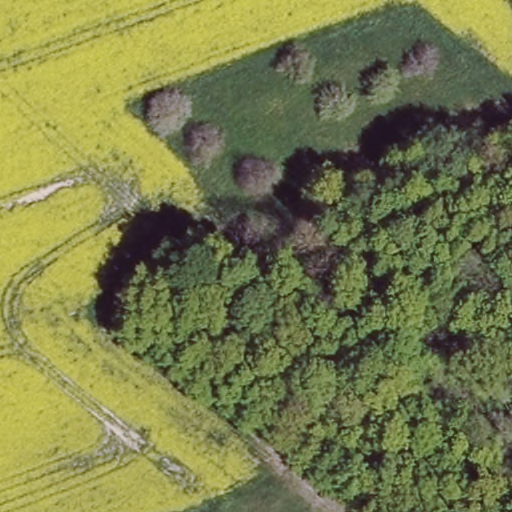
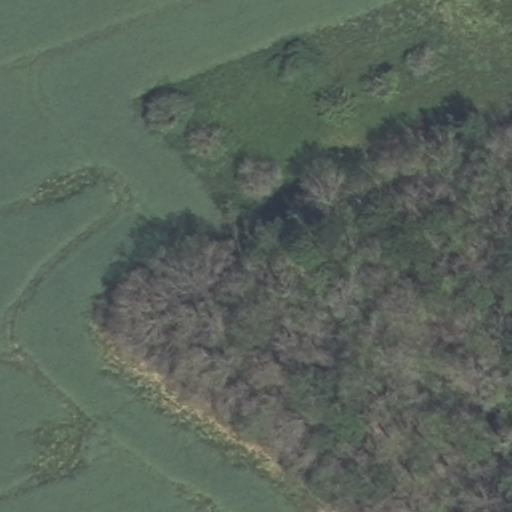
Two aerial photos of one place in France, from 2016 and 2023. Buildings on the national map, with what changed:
[]

